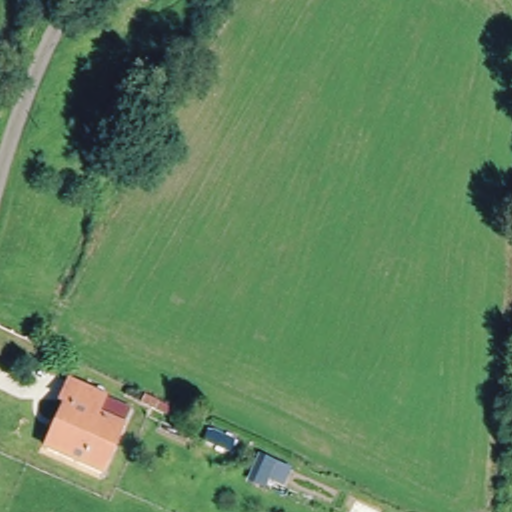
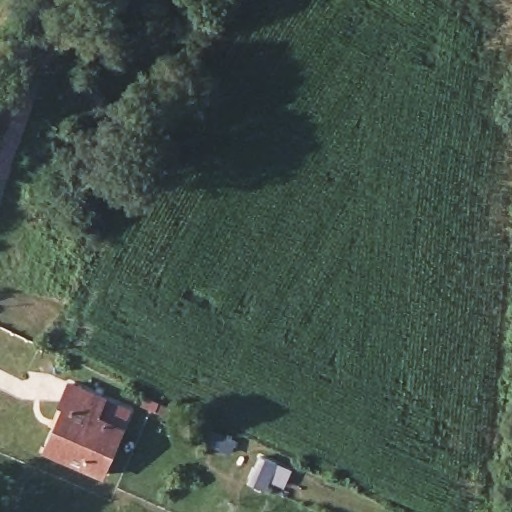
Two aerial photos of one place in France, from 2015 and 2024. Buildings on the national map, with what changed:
unchanged [(53,408),(45,406),(50,389),(121,412),(100,478),(38,457),(53,408)]

